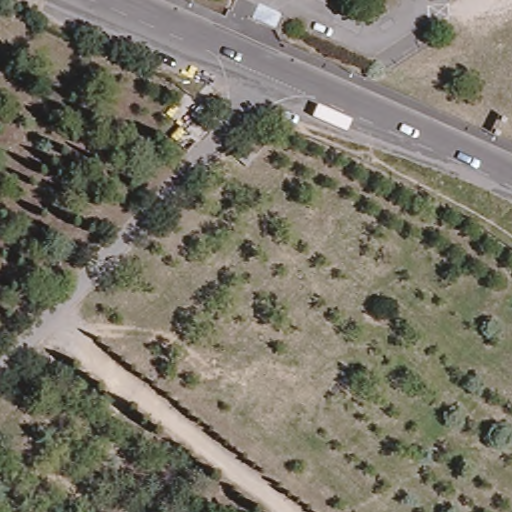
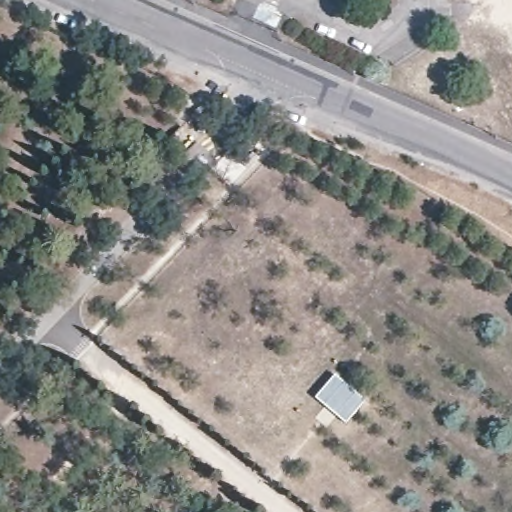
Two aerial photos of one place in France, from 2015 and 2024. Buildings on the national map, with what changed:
new [(367,401),(349,424),(316,398),(335,374),(367,401)]

